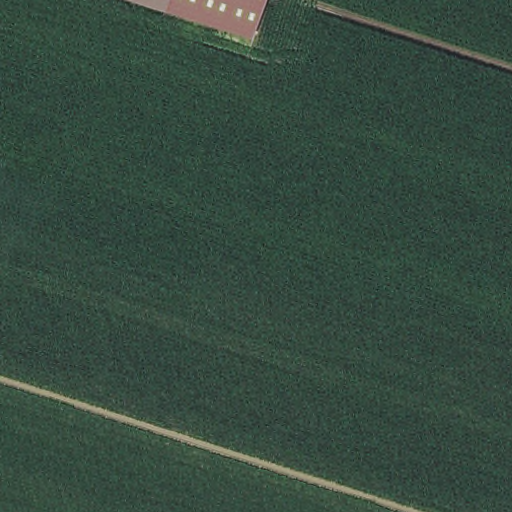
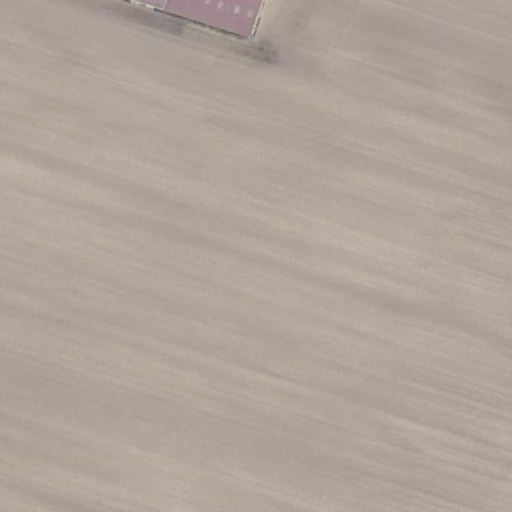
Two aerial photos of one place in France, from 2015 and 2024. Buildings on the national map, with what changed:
unchanged [(158,12),(123,0),(162,0),(158,12)]
unchanged [(249,40),(158,12),(162,0),(262,0),(249,40)]

